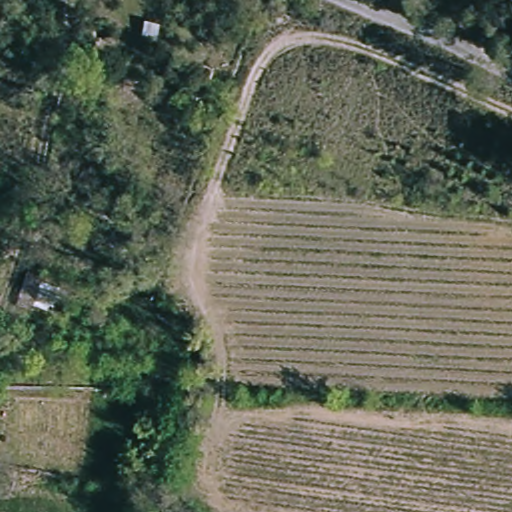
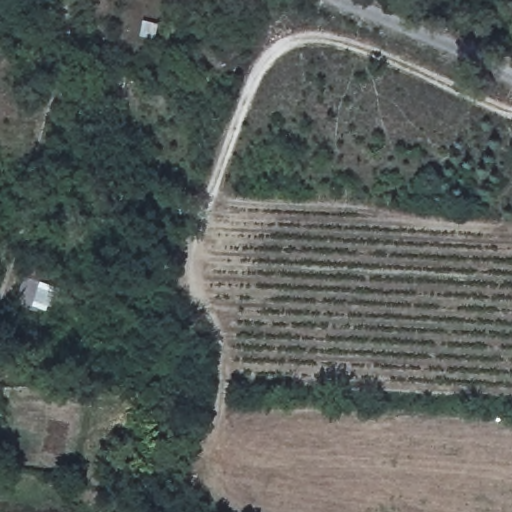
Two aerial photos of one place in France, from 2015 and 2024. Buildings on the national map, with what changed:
unchanged [(14,307),(30,256),(46,263),(32,312),(14,307)]

